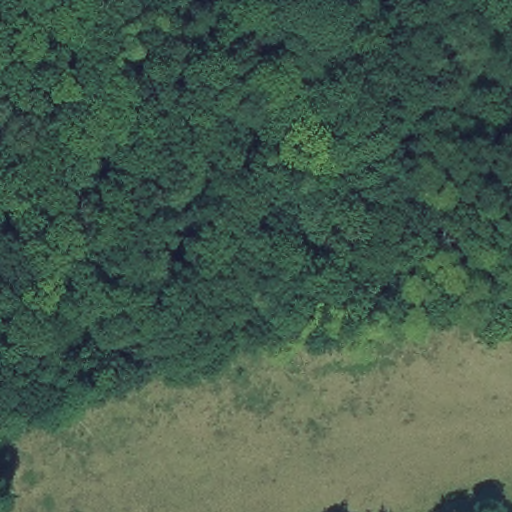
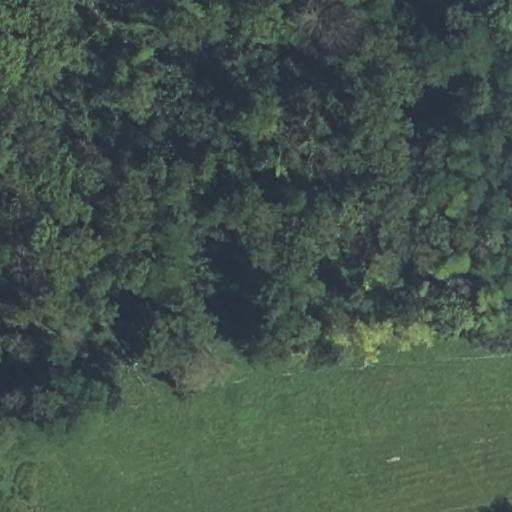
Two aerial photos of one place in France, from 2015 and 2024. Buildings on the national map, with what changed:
unchanged [(502,163),(483,162),(483,137),(502,134),(502,163)]

